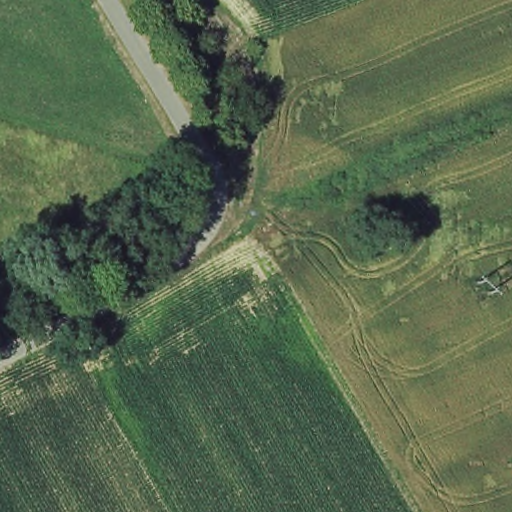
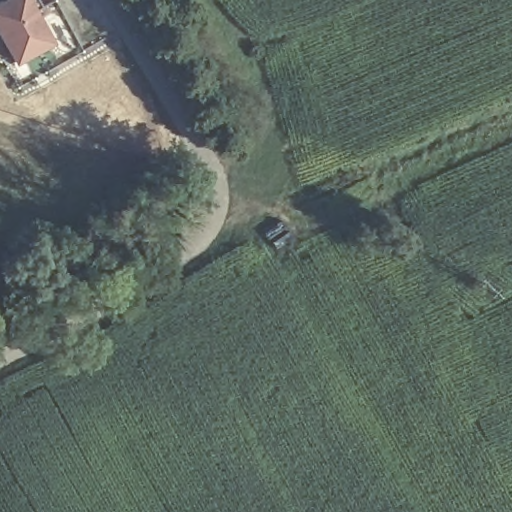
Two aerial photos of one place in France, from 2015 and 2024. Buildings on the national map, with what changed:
new [(0,45),(0,0),(1,0),(30,0),(54,44),(12,66),(0,45)]

